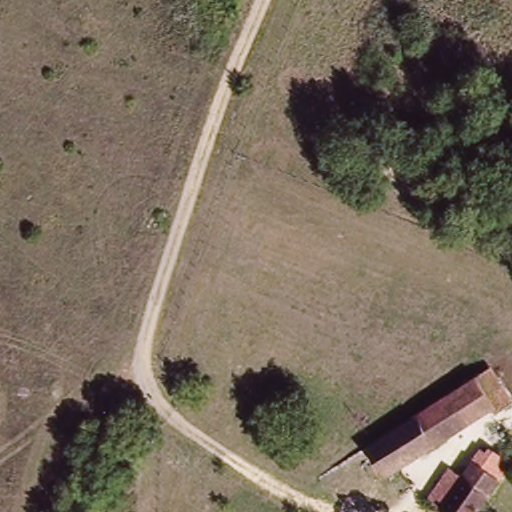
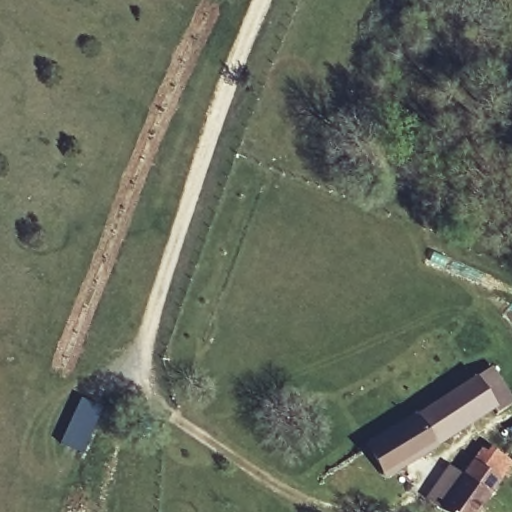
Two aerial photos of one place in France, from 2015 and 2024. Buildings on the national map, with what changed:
unchanged [(493,415),(486,405),(467,420),(449,394),(488,368),(512,401),(493,415)]
unchanged [(449,394),(467,420),(386,476),(366,450),(449,394)]
new [(81,398),(103,409),(83,452),(60,441),(81,398)]
unchanged [(458,512),(443,502),(483,446),(497,457),(512,446),(512,466),(508,471),(501,467),(469,512),(458,512)]

